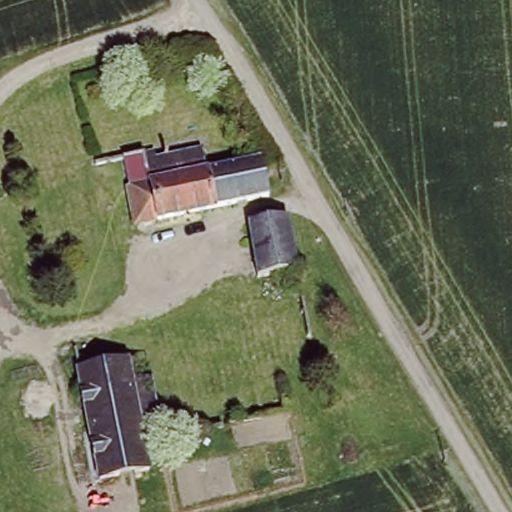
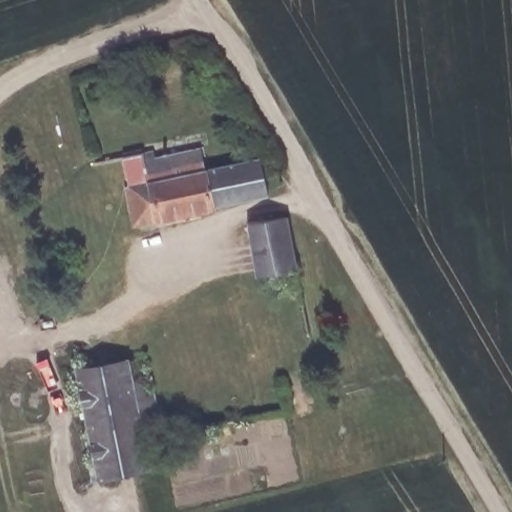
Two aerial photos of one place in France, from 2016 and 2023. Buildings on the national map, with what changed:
unchanged [(269,199),(138,231),(123,166),(152,160),(154,167),(200,156),(206,179),(261,166),(269,199)]
unchanged [(298,270),(260,274),(250,221),(287,215),(298,270)]
unchanged [(146,457),(150,471),(149,471),(100,481),(79,375),(127,364),(147,360),(154,395),(166,453),(146,457)]

